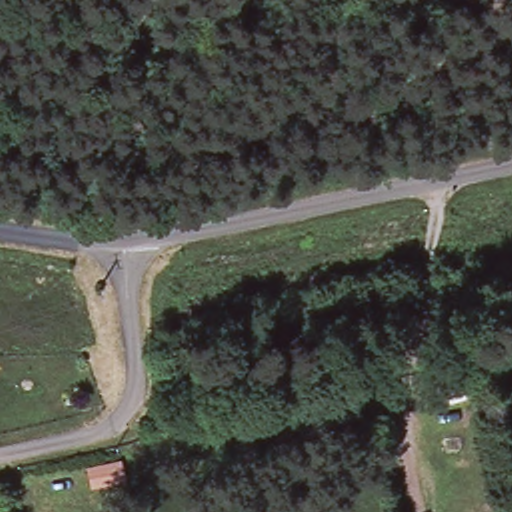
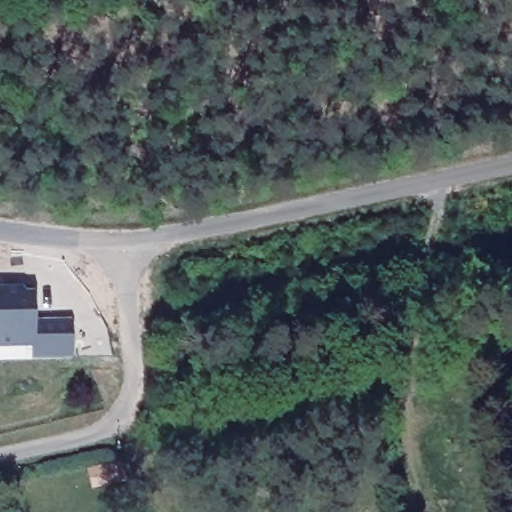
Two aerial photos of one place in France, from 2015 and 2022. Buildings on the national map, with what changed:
new [(37,290),(37,319),(75,320),(74,356),(33,357),(33,344),(0,345),(0,290),(37,290)]
unchanged [(111,468),(115,483),(97,488),(93,473),(111,468)]

